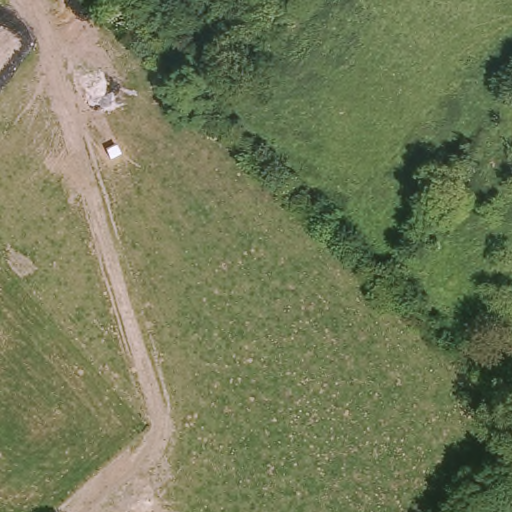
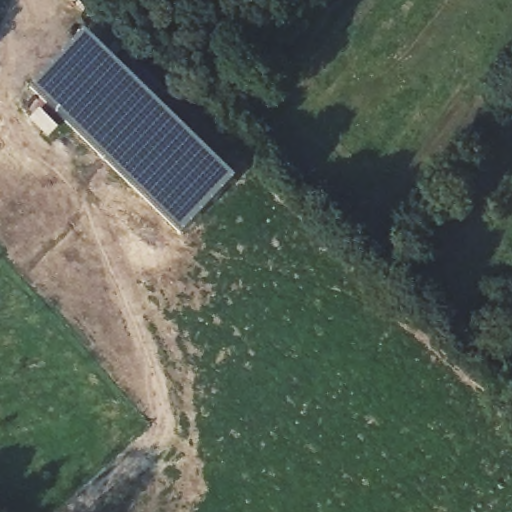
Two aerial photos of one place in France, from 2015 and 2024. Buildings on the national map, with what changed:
new [(83,34),(232,181),(181,234),(30,89),(83,34)]

